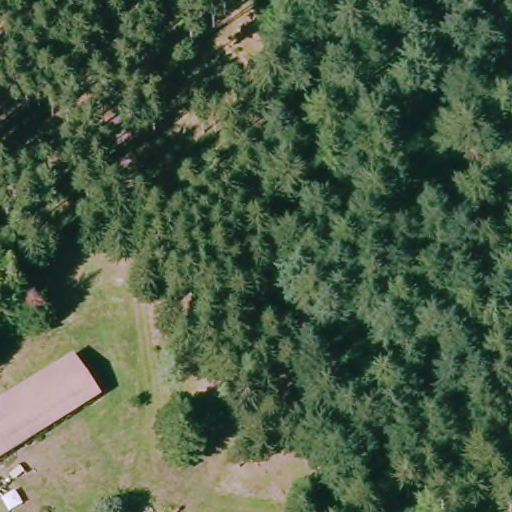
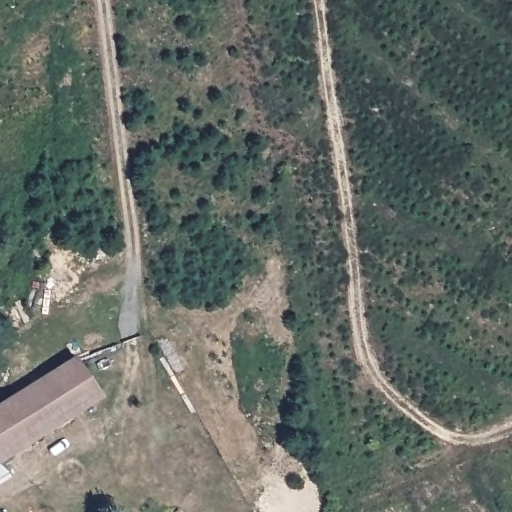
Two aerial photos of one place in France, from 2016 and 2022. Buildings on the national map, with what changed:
unchanged [(63,359),(92,406),(0,465),(0,399),(63,359)]

